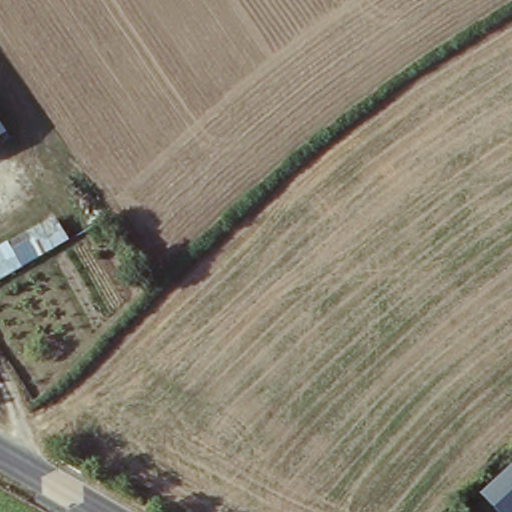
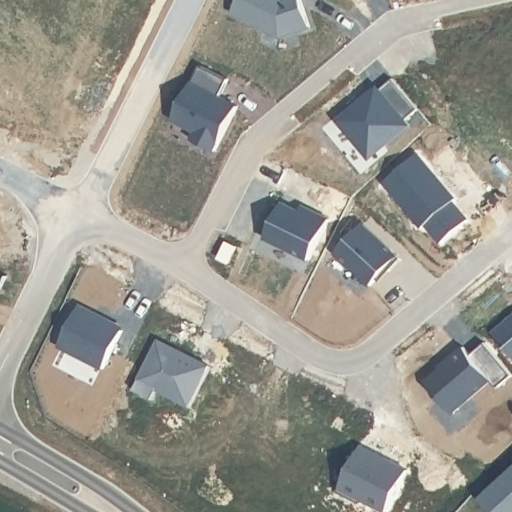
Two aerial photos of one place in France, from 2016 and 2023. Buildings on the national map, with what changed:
new [(237,0),(300,0),(309,24),(280,33),(232,9),(237,0)]
new [(228,76),(219,93),(238,103),(215,148),(192,137),(196,128),(173,116),(200,62),(228,76)]
new [(337,118),(357,101),(363,97),(376,85),(378,87),(391,76),(417,107),(403,118),(408,123),(368,155),(337,118)]
demolished [(0,147),(0,124),(11,141),(0,147)]
new [(416,153),(458,200),(454,202),(468,218),(440,242),(426,224),(421,229),(381,183),(416,153)]
new [(282,199),(309,212),(312,207),(327,215),(308,255),(264,234),(282,199)]
new [(361,220),(398,255),(387,267),(384,264),(368,281),(334,250),(361,220)]
new [(236,247),(228,264),(218,259),(226,242),(236,247)]
new [(76,305),(91,312),(91,310),(108,318),(106,320),(121,327),(101,365),(57,342),(76,305)]
new [(512,314),(512,358),(491,333),(512,314)]
new [(210,368),(189,409),(155,391),(150,402),(131,391),(156,340),(210,368)]
new [(465,350),(472,358),(485,346),(512,376),(512,377),(500,387),(494,380),(456,413),(428,382),(465,350)]
new [(386,512),(381,512),(338,489),(359,447),(405,471),(386,512)]
unchanged [(496,512),(484,499),(512,475),(512,512),(496,512)]

